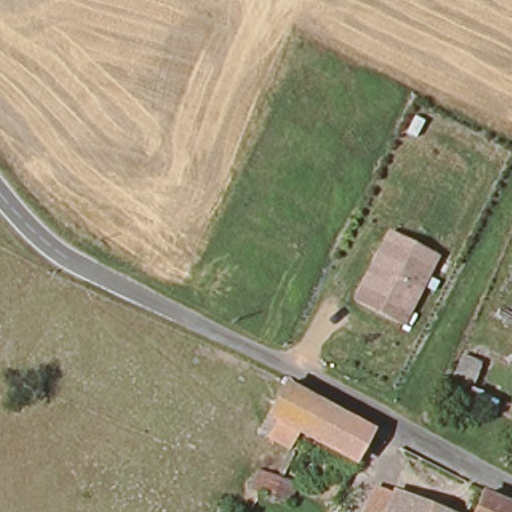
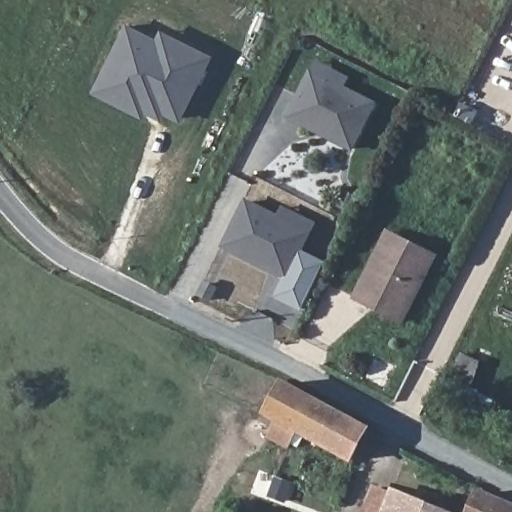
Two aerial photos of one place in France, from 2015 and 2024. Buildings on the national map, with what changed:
new [(167,32),(213,55),(180,121),(165,113),(145,118),(97,94),(130,27),(159,39),(165,36),(167,32)]
new [(377,104),(353,153),(288,118),(317,61),(350,78),(347,87),(377,104)]
new [(221,250),(244,205),(275,222),(280,212),(311,227),(306,237),(283,282),(267,273),(236,257),(221,250)]
unchanged [(359,294),(377,258),(389,236),(402,242),(435,259),(402,325),(372,310),(356,301),(359,294)]
unchanged [(287,387),(299,392),(371,430),(356,460),(290,426),(287,432),(279,427),(276,433),(265,427),(269,420),(272,416),(287,387)]
unchanged [(298,485),(291,503),(252,490),(260,470),(298,485)]
unchanged [(508,508),(507,512),(457,512),(466,491),(508,508)]
unchanged [(381,495),(427,512),(374,512),(381,495)]

